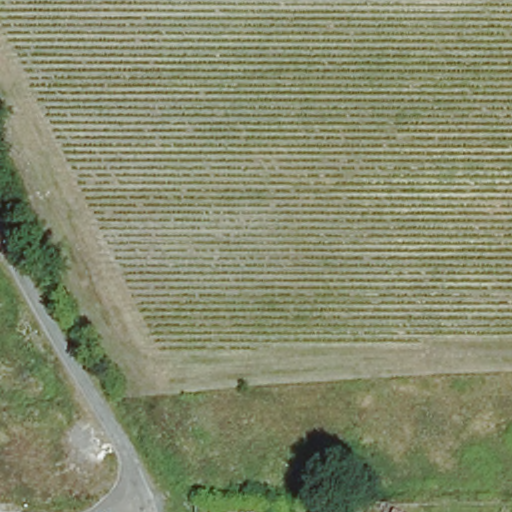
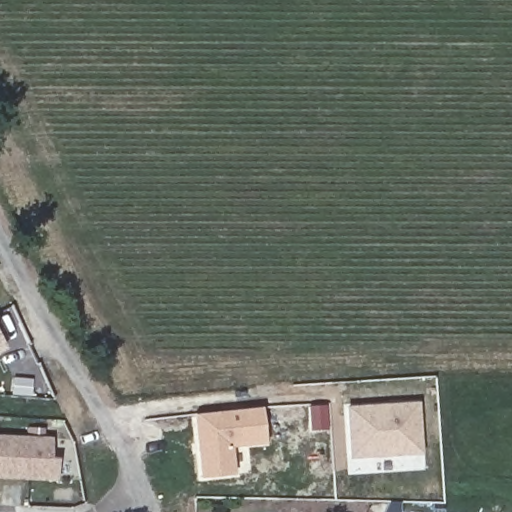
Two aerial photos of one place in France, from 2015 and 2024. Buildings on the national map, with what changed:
new [(5,348),(0,351),(0,338),(5,348)]
new [(421,453),(348,459),(345,406),(418,401),(421,453)]
new [(263,406),(267,445),(232,449),(235,472),(200,476),(194,413),(263,406)]
new [(51,440),(50,460),(57,460),(56,480),(0,478),(0,438),(51,440)]

